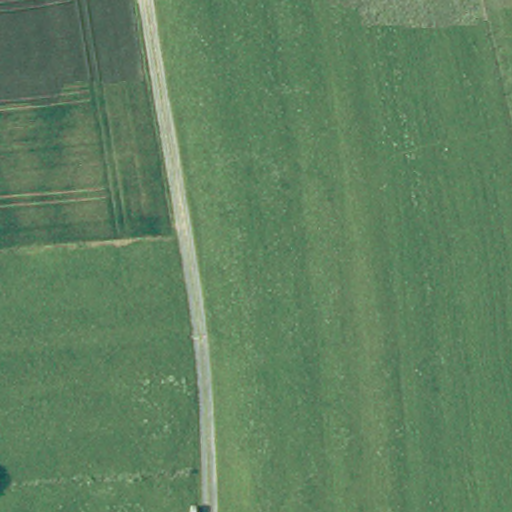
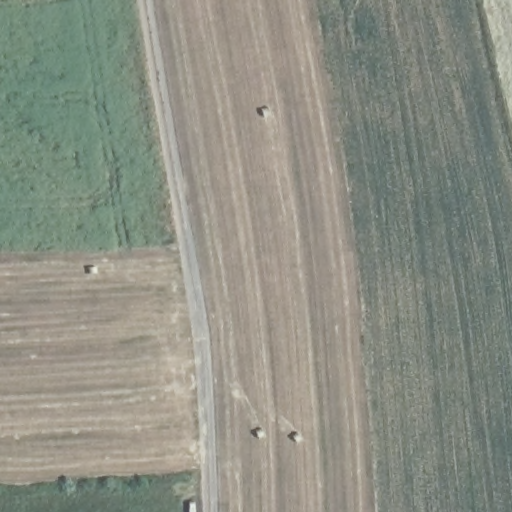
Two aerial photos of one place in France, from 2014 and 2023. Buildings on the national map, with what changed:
[]

